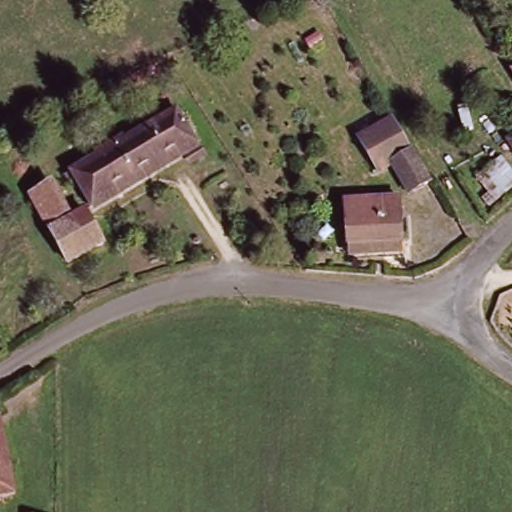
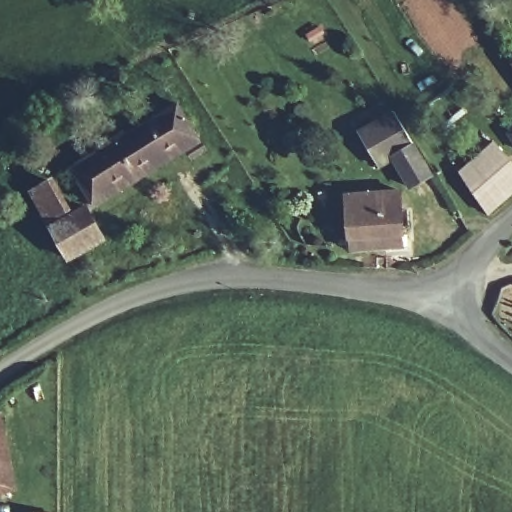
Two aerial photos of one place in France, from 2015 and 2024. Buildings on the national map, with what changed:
unchanged [(183,104),(203,135),(96,201),(77,170),(183,104)]
unchanged [(422,183),(404,154),(389,162),(368,126),(399,106),(440,171),(422,183)]
new [(512,161),(512,194),(488,216),(458,173),(494,141),(512,161)]
unchanged [(34,189),(40,185),(54,177),(71,205),(51,217),(34,189)]
unchanged [(356,236),(353,235),(349,193),(404,189),(409,230),(407,232),(408,242),(356,247),(356,236)]
unchanged [(88,205),(106,239),(73,257),(54,224),(88,205)]
unchanged [(0,489),(0,416),(14,486),(0,489)]

